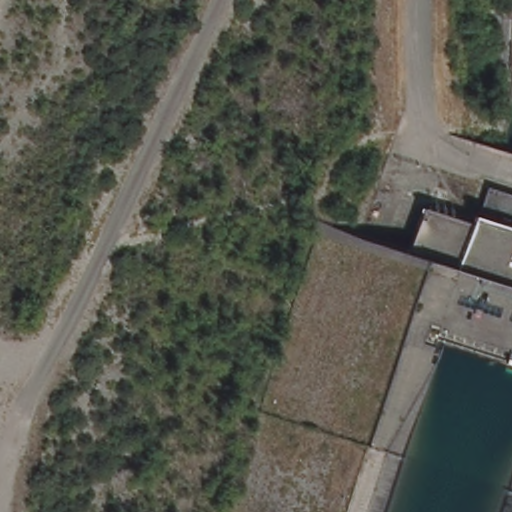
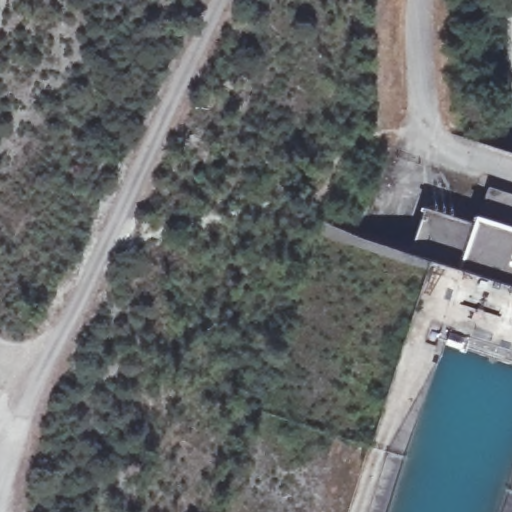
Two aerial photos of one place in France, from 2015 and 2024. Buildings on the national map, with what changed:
unchanged [(411,254),(426,207),(475,223),(477,216),(480,217),(490,187),(512,193),(512,286),(411,254)]

